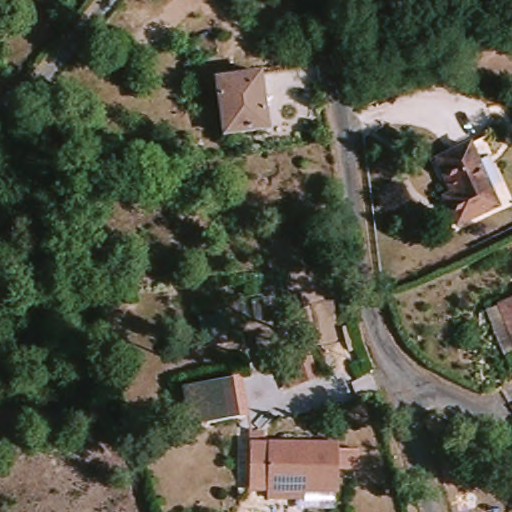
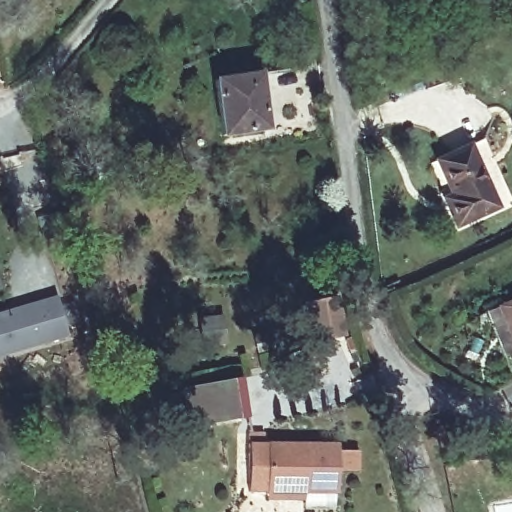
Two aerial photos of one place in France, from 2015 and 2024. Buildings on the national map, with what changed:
unchanged [(216,83),(259,75),(266,128),(223,135),(216,83)]
unchanged [(467,147),(494,207),(455,225),(443,199),(452,195),(437,161),(467,147)]
new [(61,295),(72,333),(0,355),(0,313),(61,295)]
unchanged [(512,302),(512,342),(498,308),(512,302)]
unchanged [(318,378),(284,391),(276,369),(309,356),(318,378)]
unchanged [(249,420),(189,431),(180,390),(241,380),(249,420)]
unchanged [(259,501),(259,493),(260,446),(314,446),(323,446),(323,494),(294,494),(294,501),(259,501)]

